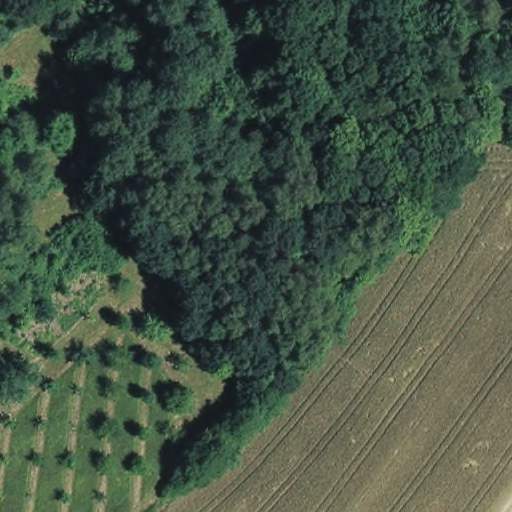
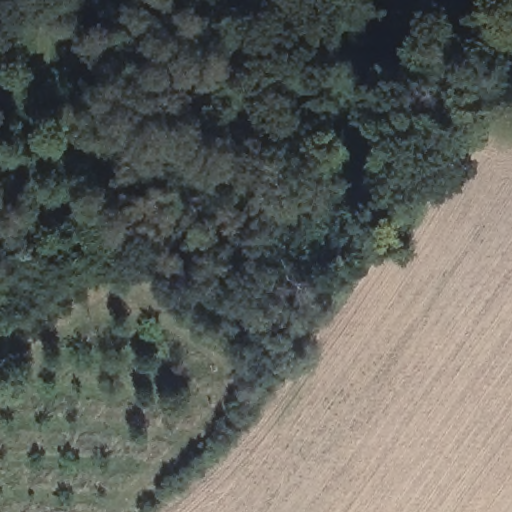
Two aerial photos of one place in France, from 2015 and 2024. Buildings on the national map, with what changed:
[]

